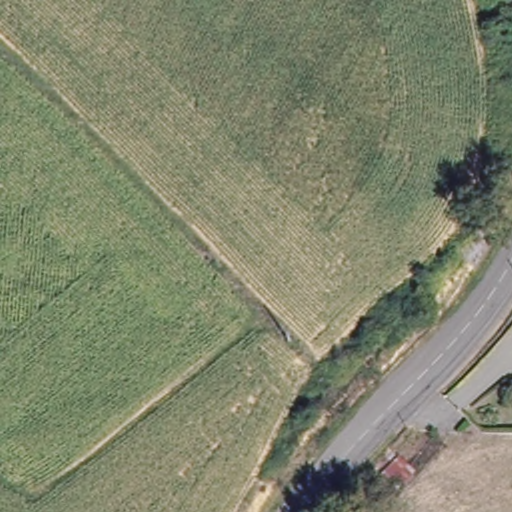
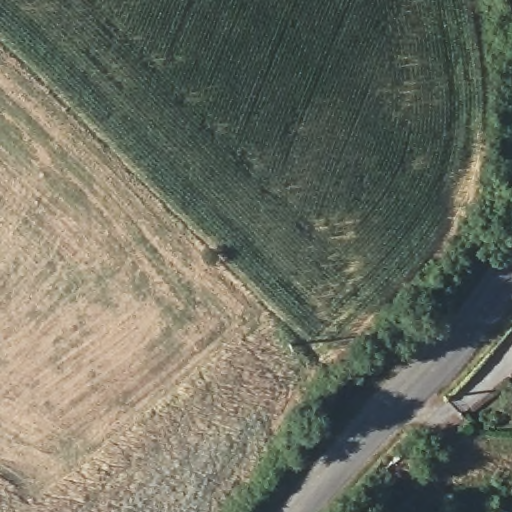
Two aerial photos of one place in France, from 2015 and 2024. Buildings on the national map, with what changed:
unchanged [(381,502),(361,483),(391,449),(418,468),(381,502)]

